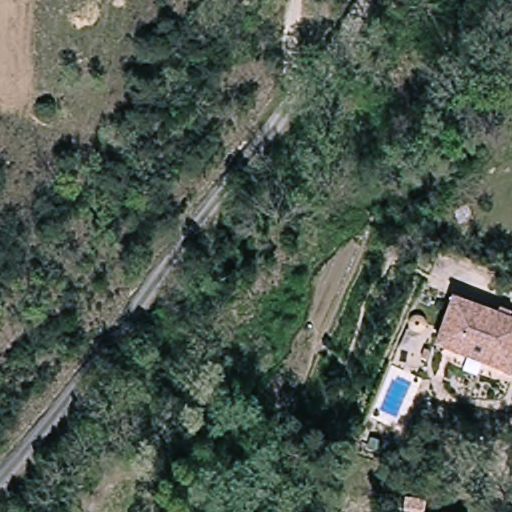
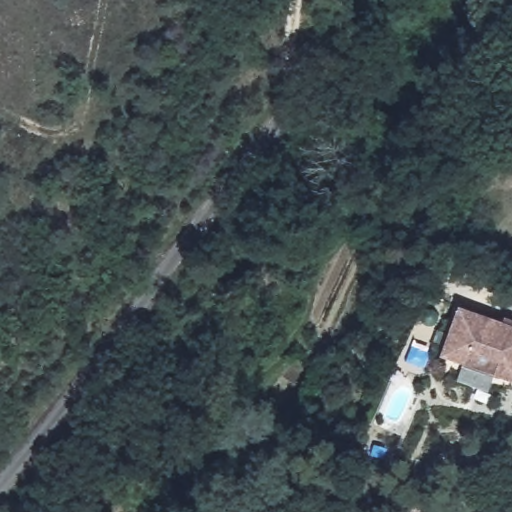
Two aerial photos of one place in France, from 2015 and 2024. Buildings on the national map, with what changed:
unchanged [(512,327),(512,380),(440,355),(456,308),(512,327)]

